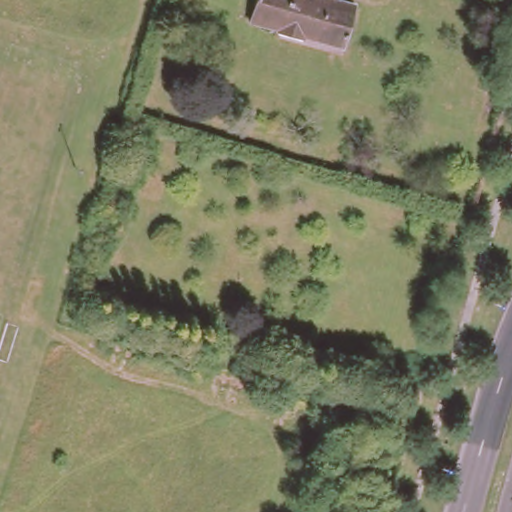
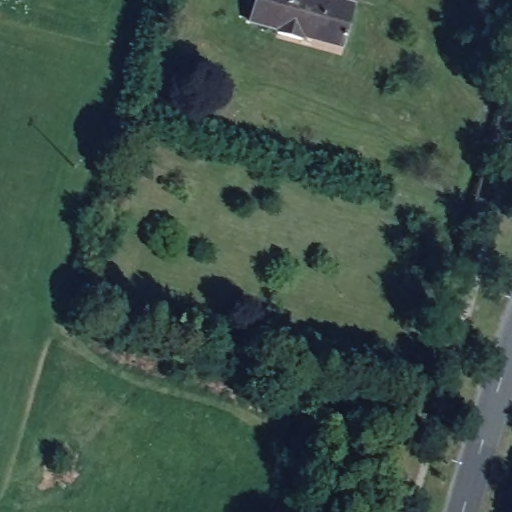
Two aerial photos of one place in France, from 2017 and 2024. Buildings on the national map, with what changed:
unchanged [(273,21),(249,13),(253,0),(345,0),(352,2),(342,36),(300,23),(295,35),(271,29),(273,21)]

